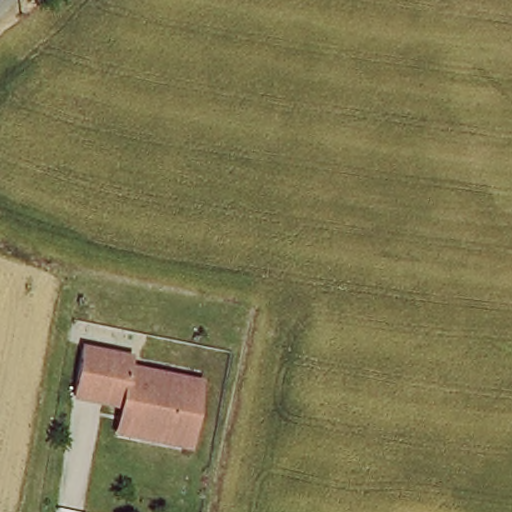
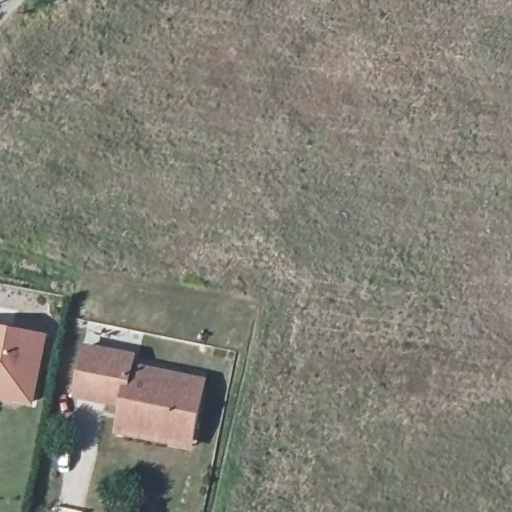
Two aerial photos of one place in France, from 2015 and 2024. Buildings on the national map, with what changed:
new [(35,406),(0,400),(0,325),(49,334),(35,406)]
unchanged [(76,395),(87,347),(134,357),(132,367),(203,383),(191,438),(135,426),(140,406),(124,402),(123,406),(122,405),(76,395)]
unchanged [(116,432),(122,405),(123,406),(124,402),(140,406),(135,426),(191,438),(189,448),(116,432)]

